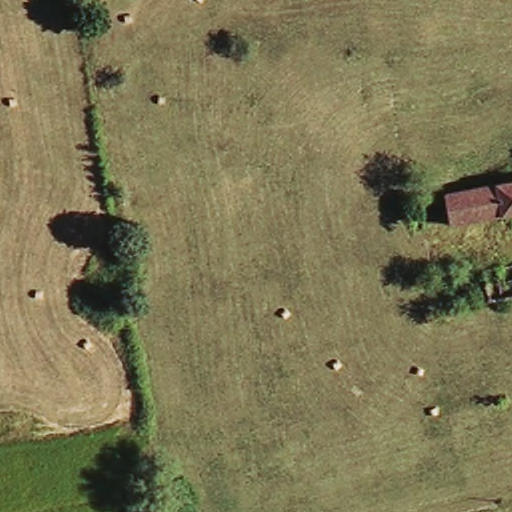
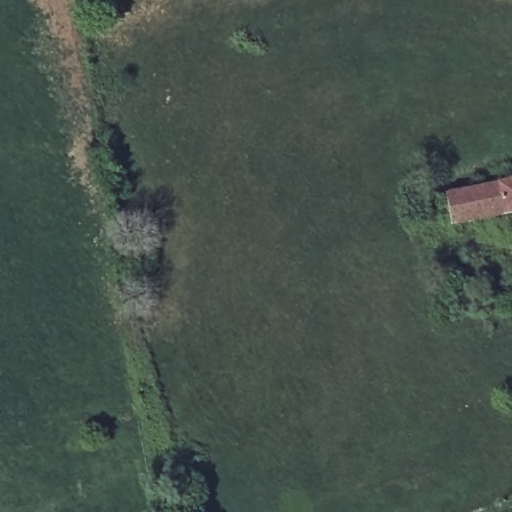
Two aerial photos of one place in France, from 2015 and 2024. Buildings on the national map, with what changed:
unchanged [(512,181),(512,213),(469,221),(442,226),(435,196),(464,190),(512,181)]
unchanged [(494,269),(512,267),(512,296),(499,298),(494,269)]

